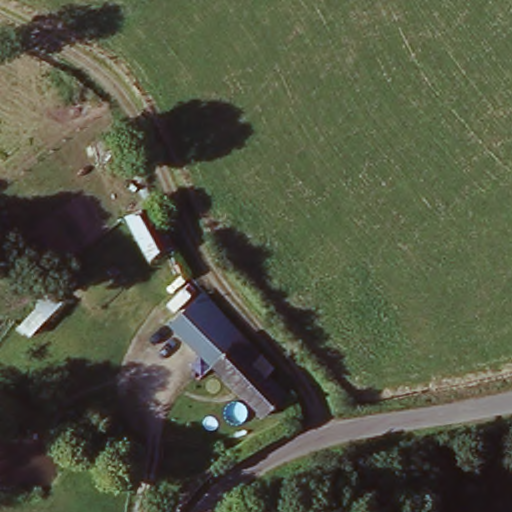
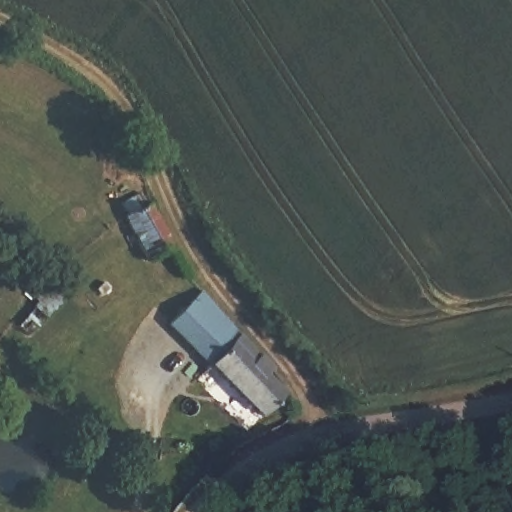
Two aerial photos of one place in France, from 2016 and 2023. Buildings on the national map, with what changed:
unchanged [(173,247),(148,260),(125,217),(150,204),(173,247)]
unchanged [(51,289),(62,301),(30,337),(20,325),(51,289)]
unchanged [(281,393),(257,417),(162,322),(189,298),(212,323),(220,315),(242,341),(267,368),(262,373),(281,393)]

